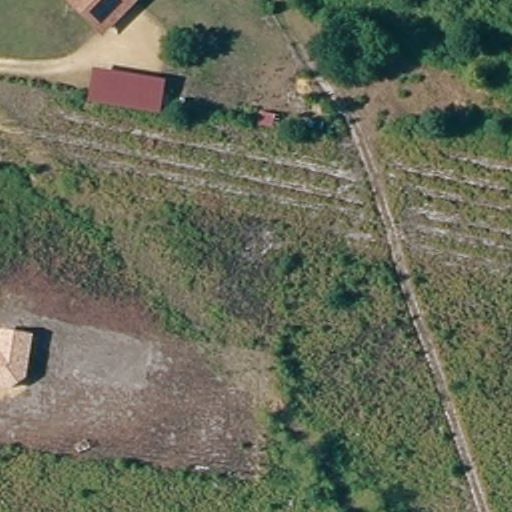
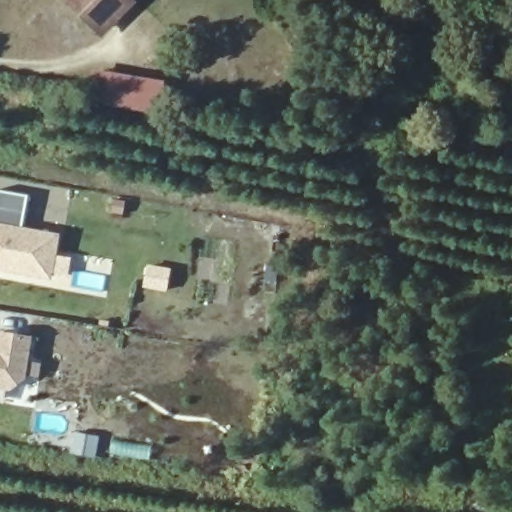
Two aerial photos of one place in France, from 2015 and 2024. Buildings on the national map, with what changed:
unchanged [(75,0),(126,0),(110,15),(99,25),(75,0)]
unchanged [(165,80),(161,114),(154,113),(146,111),(88,103),(94,69),(165,80)]
new [(24,227),(62,235),(53,282),(0,272),(0,190),(29,196),(24,227)]
unchanged [(34,335),(28,378),(11,389),(0,388),(0,330),(34,335)]

